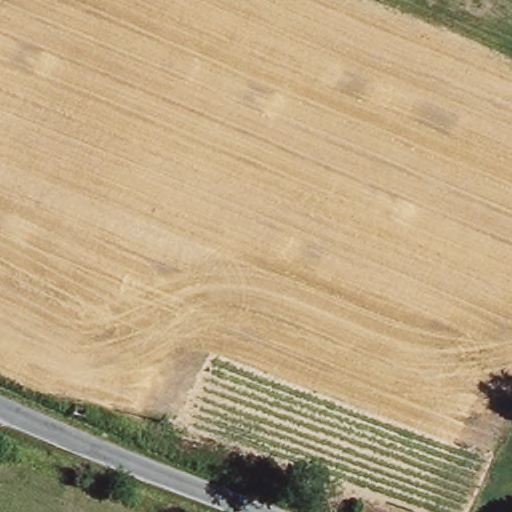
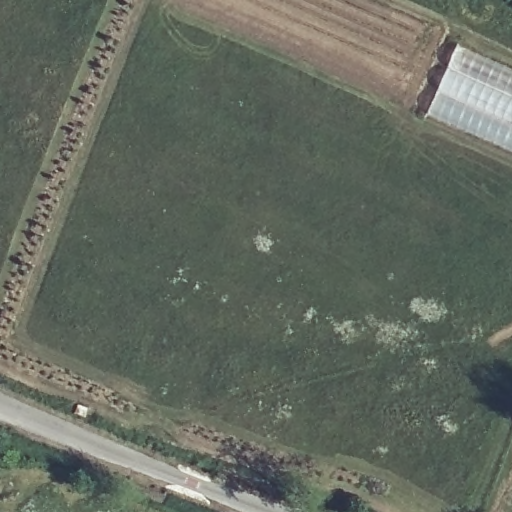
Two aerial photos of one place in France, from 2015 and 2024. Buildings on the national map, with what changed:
new [(457,42),(512,68),(512,151),(427,113),(457,42)]

